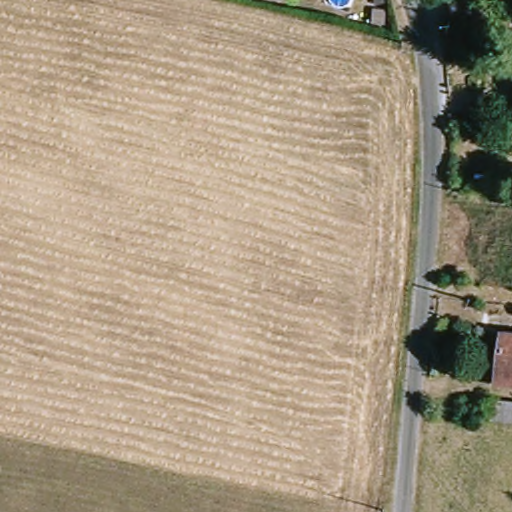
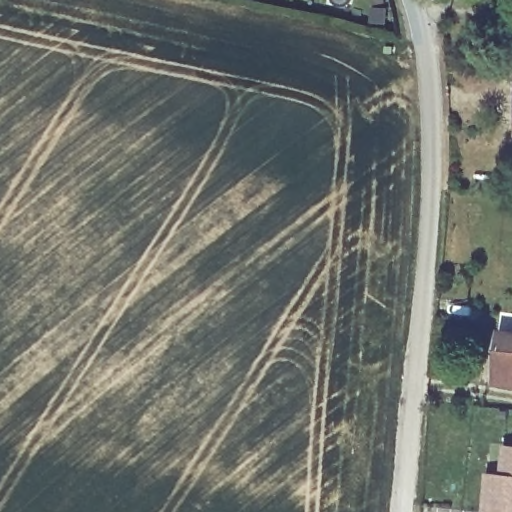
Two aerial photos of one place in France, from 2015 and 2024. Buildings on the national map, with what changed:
unchanged [(389,25),(375,25),(376,10),(390,11),(389,25)]
unchanged [(512,379),(502,377),(507,327),(512,328),(512,379)]
unchanged [(512,396),(512,414),(496,411),(498,393),(512,396)]
new [(501,475),(502,447),(512,447),(512,512),(485,512),(485,507),(486,475),(501,475)]

